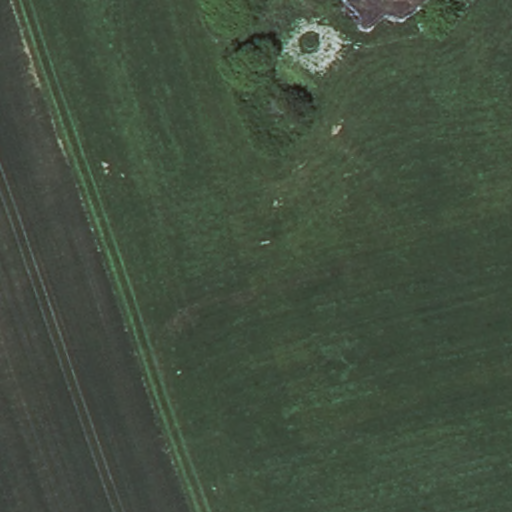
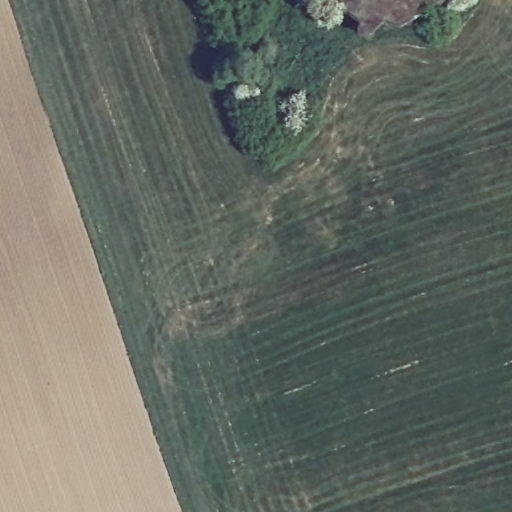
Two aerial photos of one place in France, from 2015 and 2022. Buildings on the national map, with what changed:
unchanged [(362,25),(335,0),(429,0),(416,13),(362,25)]

